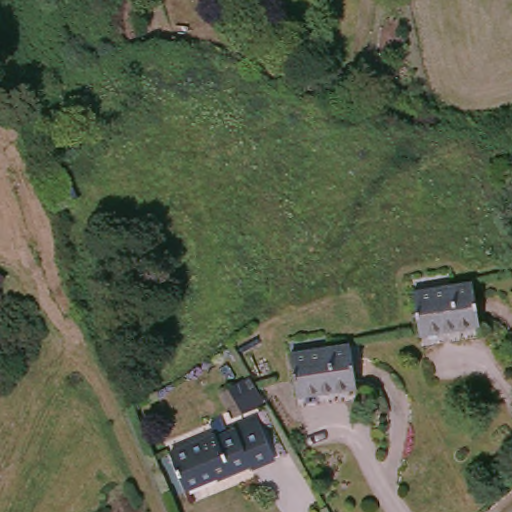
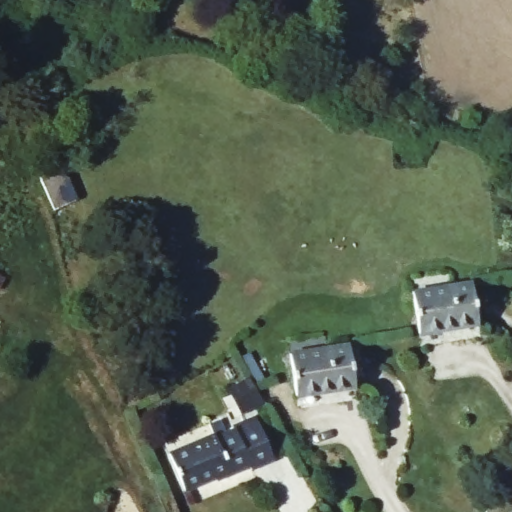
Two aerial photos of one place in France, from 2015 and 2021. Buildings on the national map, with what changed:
unchanged [(408,298),(468,288),(474,332),(413,340),(408,298)]
unchanged [(349,395),(289,403),(285,362),(343,353),(349,395)]
unchanged [(209,443),(210,445),(233,437),(231,434),(256,425),(273,468),(249,477),(248,475),(213,487),(212,485),(180,496),(166,460),(209,443)]

